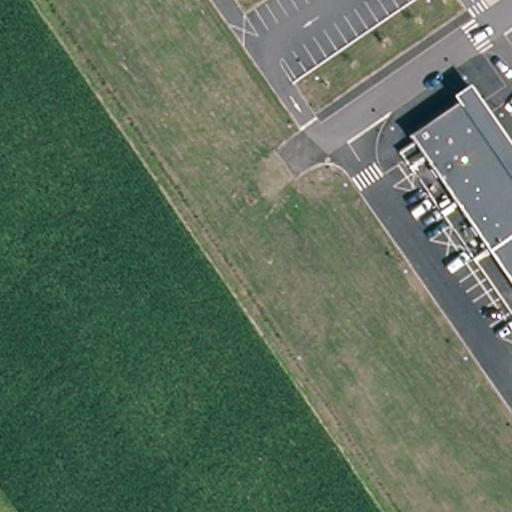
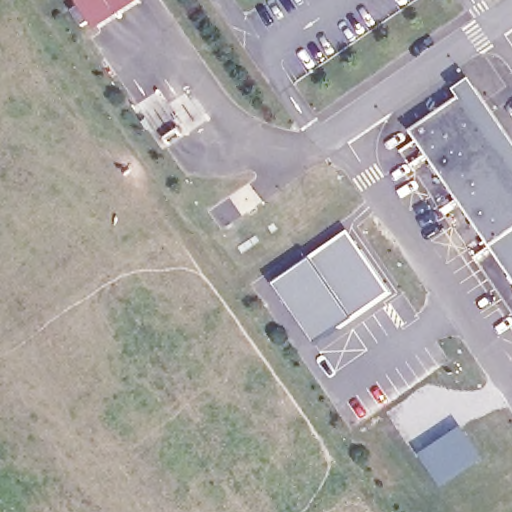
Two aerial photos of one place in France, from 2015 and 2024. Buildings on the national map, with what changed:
unchanged [(81,0),(134,0),(140,9),(95,39),(90,30),(82,35),(71,19),(79,14),(73,5),(81,0)]
unchanged [(512,140),(512,277),(412,130),(459,95),(454,89),(470,79),(512,140)]
new [(347,229),(392,293),(313,343),(271,283),(347,229)]
new [(462,427),(482,457),(442,483),(422,453),(462,427)]

